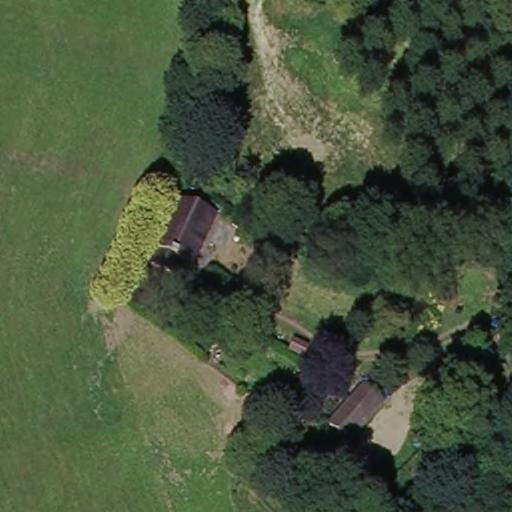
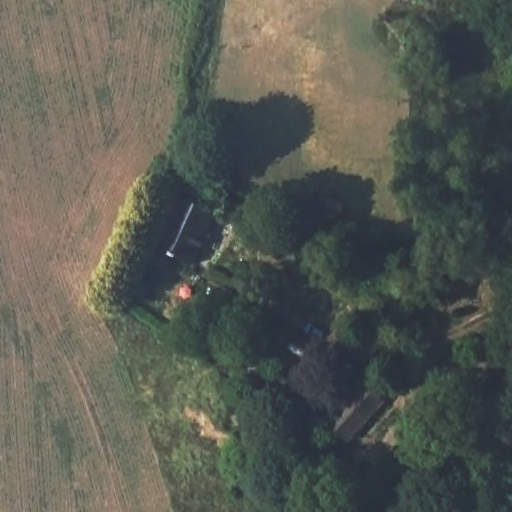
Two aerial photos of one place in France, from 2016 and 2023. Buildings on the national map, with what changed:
unchanged [(218,207),(194,260),(185,256),(178,269),(151,257),(180,191),(218,207)]
unchanged [(239,327),(218,317),(213,315),(220,299),(225,302),(245,312),(239,327)]
unchanged [(329,420),(350,395),(365,378),(385,397),(371,412),(350,437),(329,420)]

